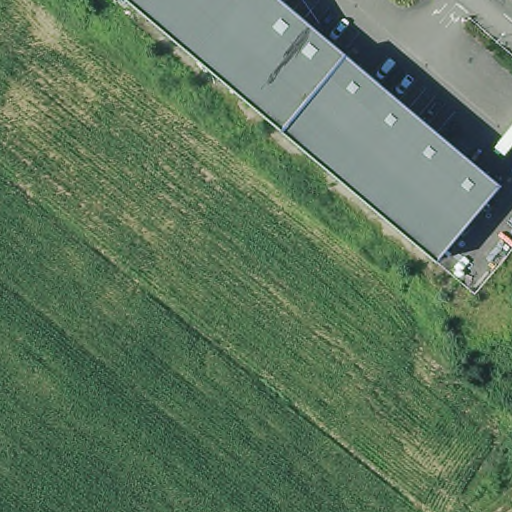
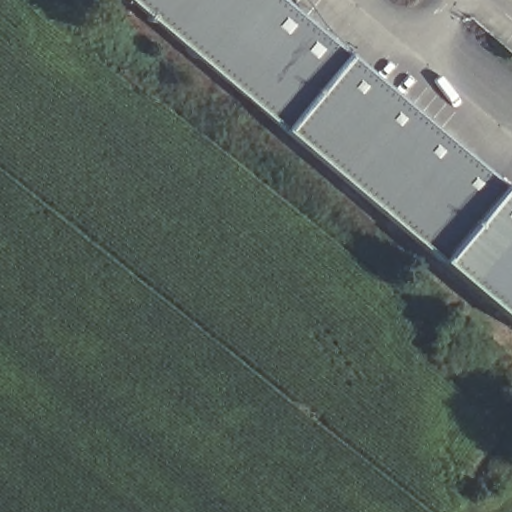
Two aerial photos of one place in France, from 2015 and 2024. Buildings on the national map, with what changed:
unchanged [(348,55),(501,183),(438,257),(285,130),(133,0),(286,0),(284,2),(348,55)]
new [(501,183),(512,192),(512,321),(438,257),(501,183)]

